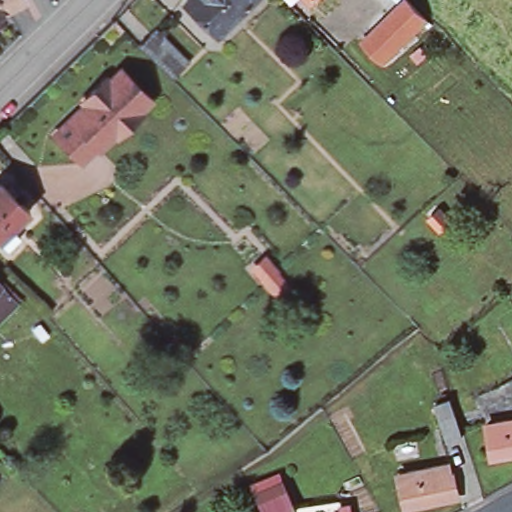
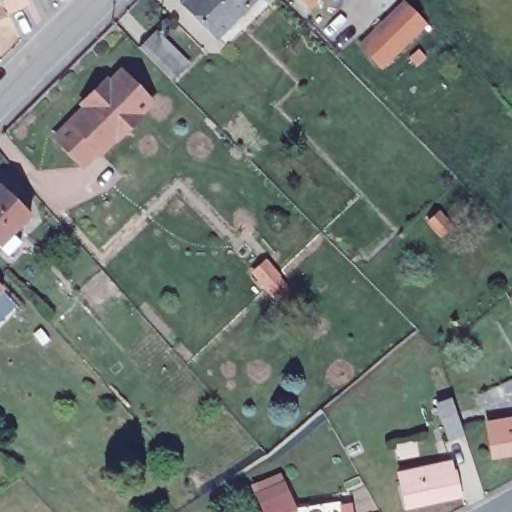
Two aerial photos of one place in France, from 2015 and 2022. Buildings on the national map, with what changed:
unchanged [(0,15),(0,0),(22,0),(24,3),(0,15)]
unchanged [(182,4),(187,0),(251,0),(216,37),(182,4)]
unchanged [(315,0),(310,5),(305,0),(315,0)]
unchanged [(377,73),(355,52),(400,7),(421,28),(377,73)]
unchanged [(155,32),(188,65),(172,81),(139,47),(155,32)]
unchanged [(157,101),(144,113),(147,116),(117,143),(115,140),(84,168),(50,135),(81,106),(78,103),(107,75),(109,77),(121,66),(157,101)]
unchanged [(0,247),(0,187),(29,215),(10,233),(20,242),(7,254),(0,247)]
unchanged [(0,297),(0,286),(5,291),(0,297)]
unchanged [(456,414),(463,436),(446,441),(440,419),(456,414)]
unchanged [(512,419),(512,453),(494,455),(488,423),(512,419)]
unchanged [(450,463),(456,496),(407,506),(400,473),(450,463)]
unchanged [(253,485),(287,473),(301,508),(302,508),(347,501),(347,509),(352,508),(353,512),(264,512),(253,485)]

